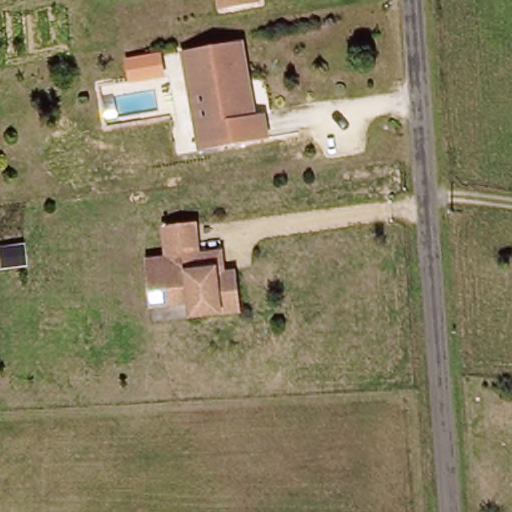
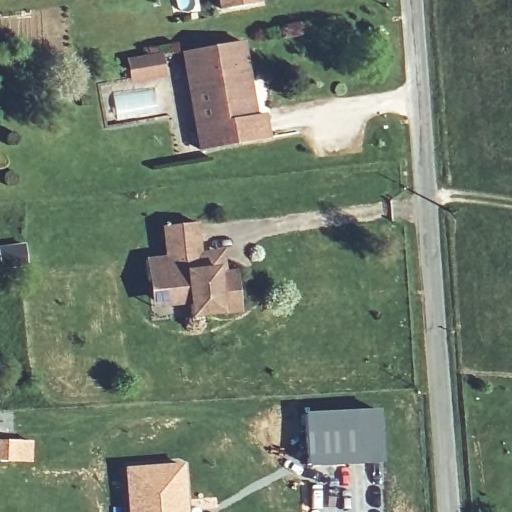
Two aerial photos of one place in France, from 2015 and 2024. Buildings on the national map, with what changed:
unchanged [(218,12),(216,0),(255,0),(256,4),(218,12)]
unchanged [(182,50),(241,41),(253,115),(261,114),(266,139),(198,149),(194,125),(188,91),(182,50)]
unchanged [(146,281),(143,260),(164,257),(161,226),(195,223),(198,254),(220,252),(222,273),(234,271),(238,311),(199,316),(197,302),(174,305),(149,306),(146,281)]
new [(383,461),(308,465),(304,415),(381,410),(383,461)]
new [(187,512),(127,512),(123,468),(183,463),(187,512)]

